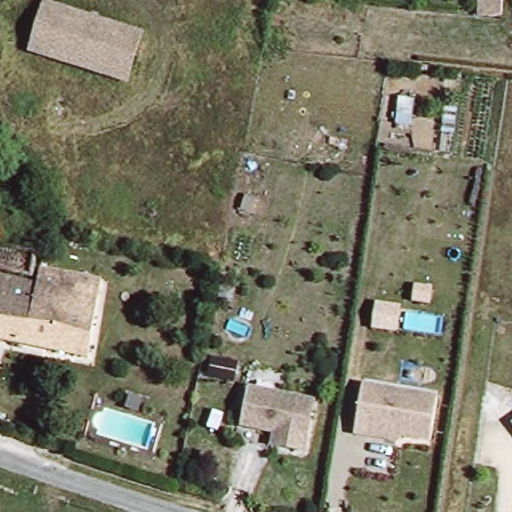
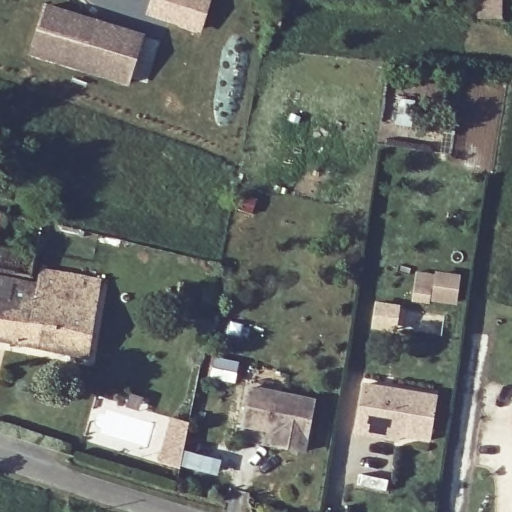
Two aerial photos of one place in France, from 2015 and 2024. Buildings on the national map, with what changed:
new [(149,0),(211,0),(200,34),(144,15),(149,0)]
new [(498,20),(476,19),(476,0),(498,0),(498,20)]
unchanged [(45,3),(142,36),(125,83),(28,51),(45,3)]
unchanged [(38,217),(27,278),(0,274),(0,210),(38,217)]
unchanged [(7,307),(13,281),(30,285),(33,267),(98,279),(82,358),(0,343),(0,306),(7,307)]
new [(413,296),(416,271),(461,277),(458,306),(431,303),(432,298),(413,296)]
unchanged [(13,281),(7,307),(0,306),(0,279),(13,281)]
unchanged [(349,435),(356,382),(433,396),(427,442),(394,437),(396,443),(349,435)]
unchanged [(310,402),(300,452),(268,446),(270,433),(238,426),(246,389),(310,402)]
new [(168,420),(183,422),(173,470),(154,466),(168,420)]

